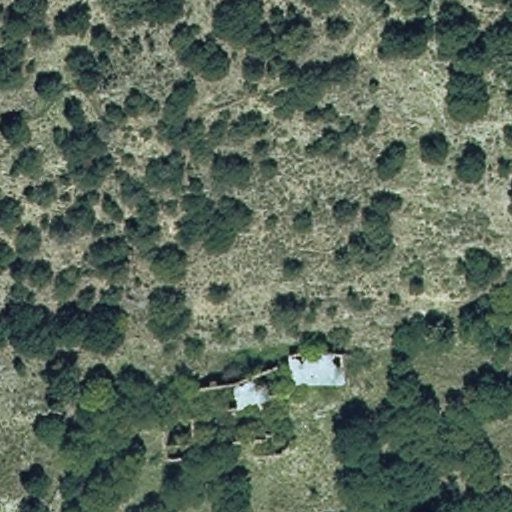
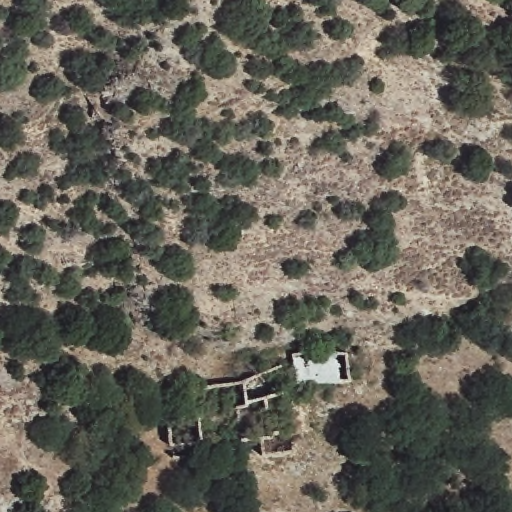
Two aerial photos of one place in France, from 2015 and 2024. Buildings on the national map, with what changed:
unchanged [(295,352),(351,350),(351,381),(298,383),(295,352)]
unchanged [(269,370),(275,397),(242,407),(238,382),(269,370)]

